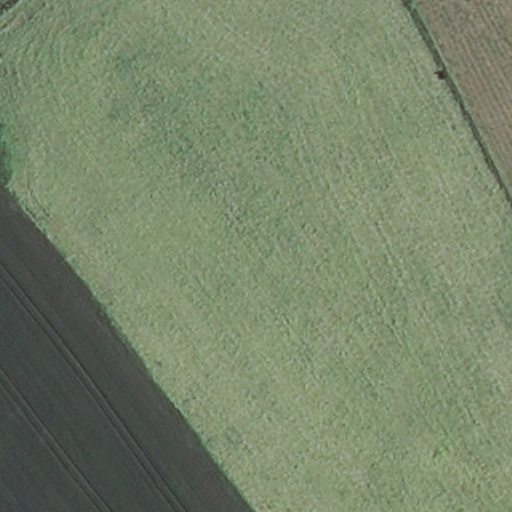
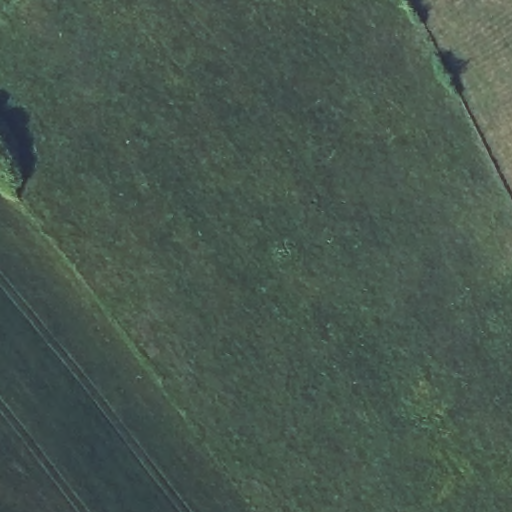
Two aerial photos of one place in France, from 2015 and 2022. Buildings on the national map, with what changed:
[]

